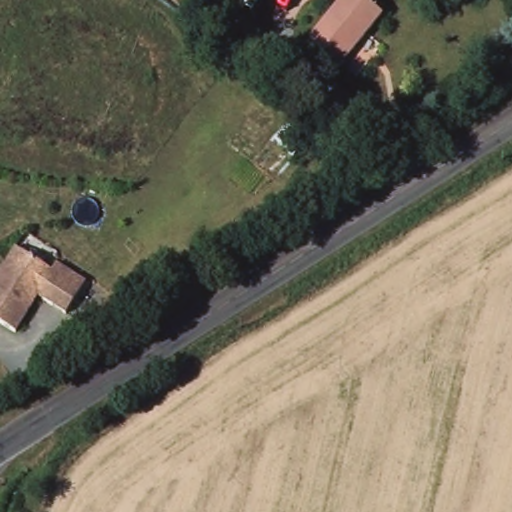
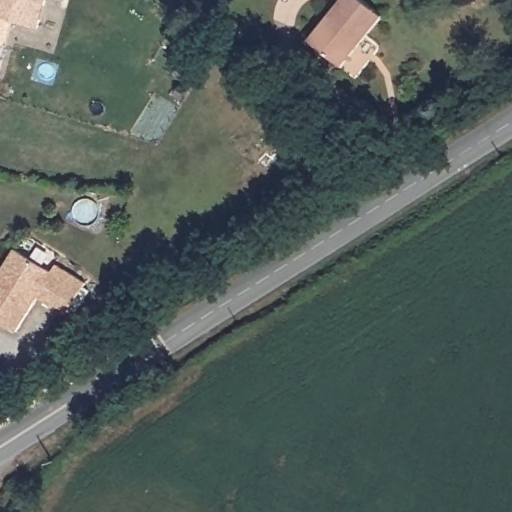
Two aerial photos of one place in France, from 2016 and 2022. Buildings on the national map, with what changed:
new [(0,0),(46,0),(38,29),(0,17),(0,0)]
unchanged [(363,0),(382,16),(341,66),(309,40),(342,0),(363,0)]
unchanged [(0,281),(20,249),(57,272),(61,264),(91,284),(71,314),(42,297),(20,333),(0,320),(0,281)]

